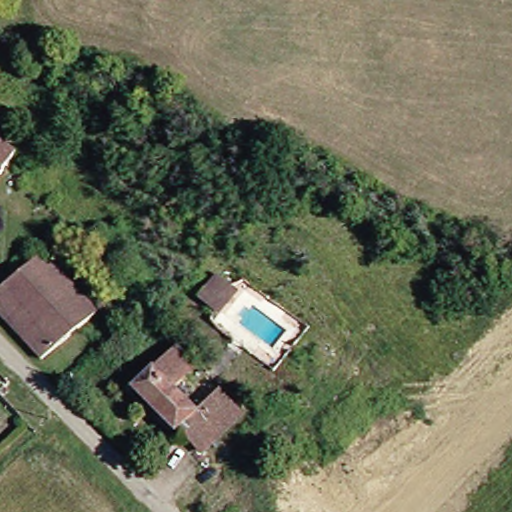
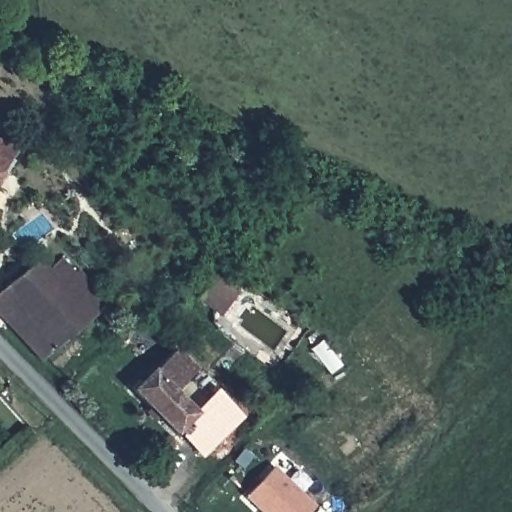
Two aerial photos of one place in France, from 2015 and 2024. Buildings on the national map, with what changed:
unchanged [(13,161),(0,179),(0,152),(13,161)]
unchanged [(34,261),(62,292),(79,276),(117,312),(96,333),(82,322),(39,358),(0,313),(0,293),(34,261)]
unchanged [(210,330),(207,312),(194,302),(212,277),(230,289),(251,287),(308,327),(271,374),(210,330)]
unchanged [(187,435),(185,431),(175,433),(134,390),(165,358),(175,347),(195,367),(185,377),(172,388),(197,415),(210,402),(220,393),(225,398),(241,415),(203,453),(187,435)]
new [(245,498),(275,467),(316,507),(311,512),(260,512),(245,498)]

